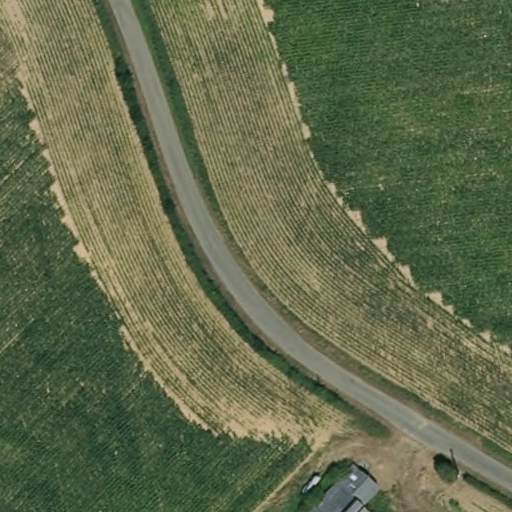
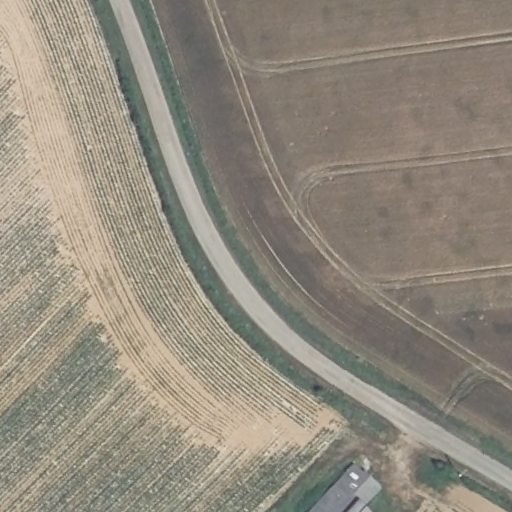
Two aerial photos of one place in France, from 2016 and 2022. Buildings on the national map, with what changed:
unchanged [(358,466),(380,488),(365,505),(372,512),(314,512),(358,466)]

